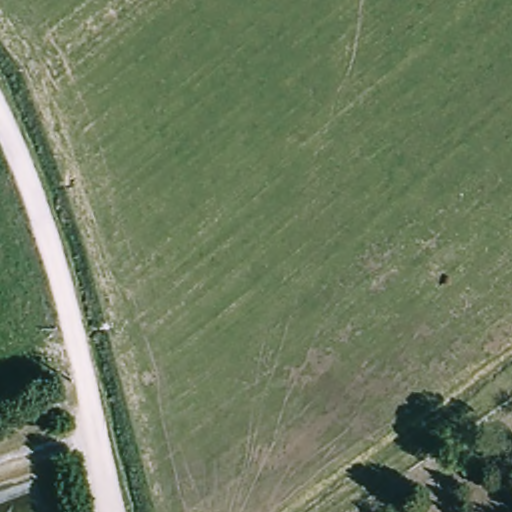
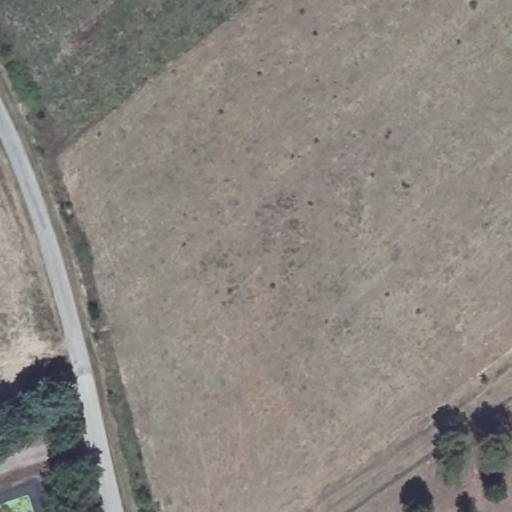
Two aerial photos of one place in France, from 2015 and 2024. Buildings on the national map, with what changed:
unchanged [(53,426),(50,413),(60,411),(63,423),(53,426)]

